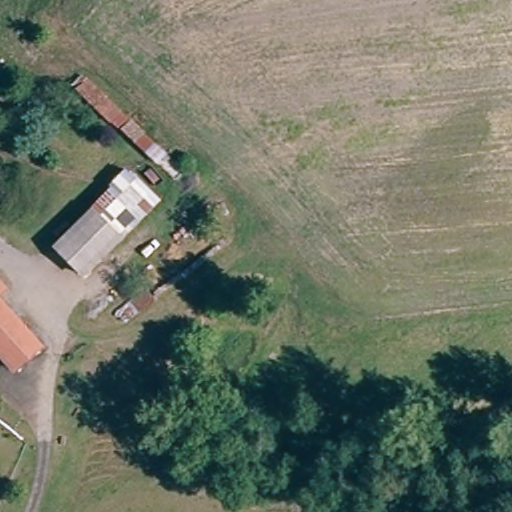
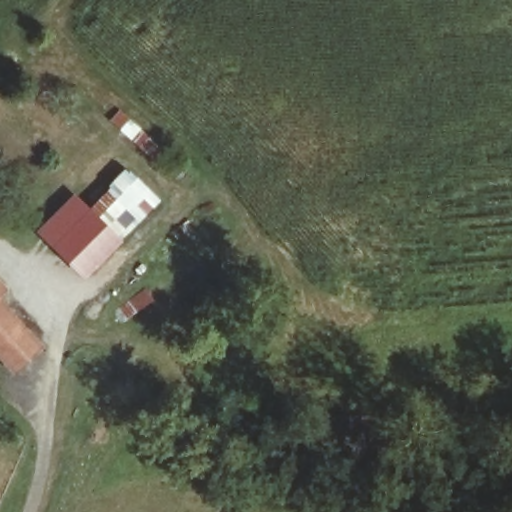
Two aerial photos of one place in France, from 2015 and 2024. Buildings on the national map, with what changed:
unchanged [(109,165),(143,189),(114,230),(80,206),(109,165)]
unchanged [(51,247),(80,206),(114,230),(85,271),(51,247)]
unchanged [(15,288),(5,298),(17,312),(24,305),(43,326),(35,333),(49,347),(25,369),(0,342),(0,272),(15,288)]

